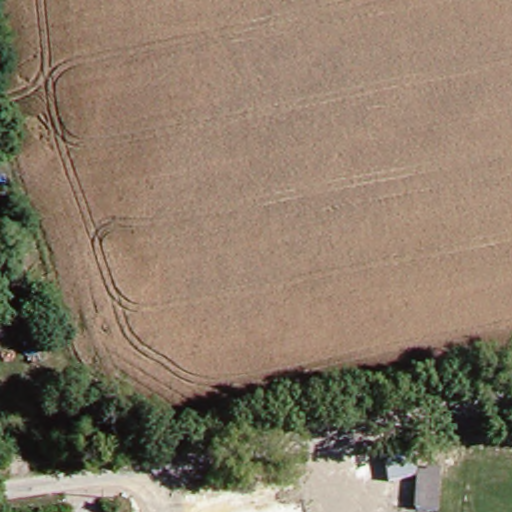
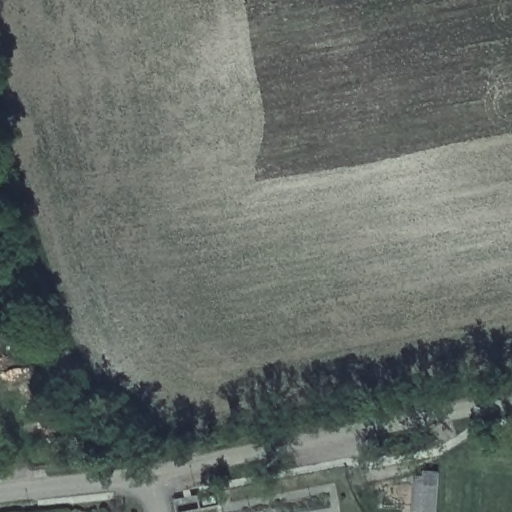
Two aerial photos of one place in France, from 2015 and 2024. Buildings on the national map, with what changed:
unchanged [(439,512),(417,512),(420,472),(442,474),(439,512)]

